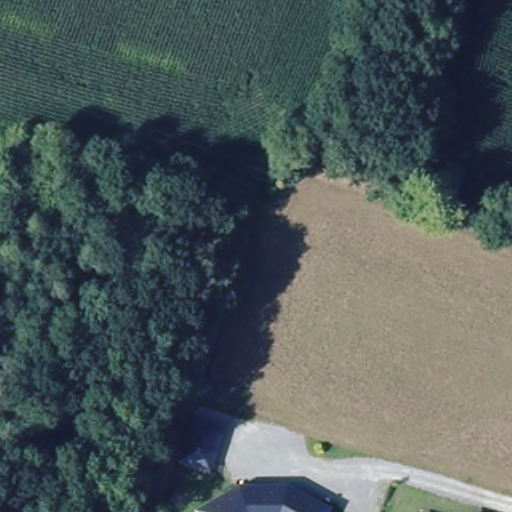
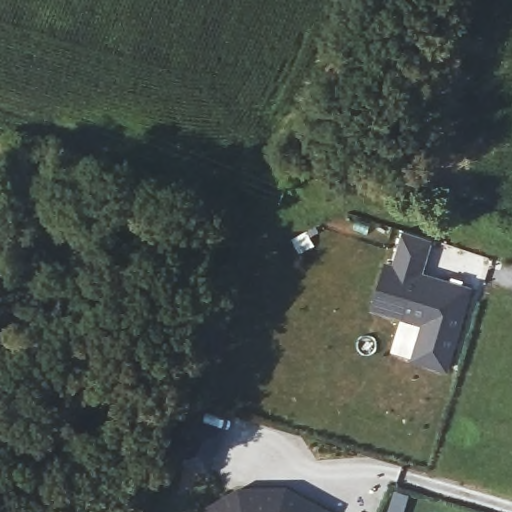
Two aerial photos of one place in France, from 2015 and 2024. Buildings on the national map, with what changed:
new [(392,267),(396,252),(403,231),(430,240),(424,261),(419,276),(467,291),(442,370),(411,359),(422,323),(371,307),(385,265),(392,267)]
unchanged [(212,464),(182,455),(192,422),(193,417),(223,426),(212,464)]
unchanged [(231,488),(233,487),(271,483),(283,482),(295,488),(326,505),(322,512),(200,512),(231,488)]

